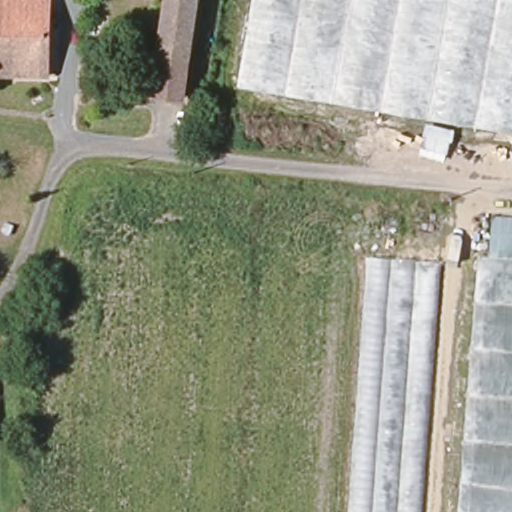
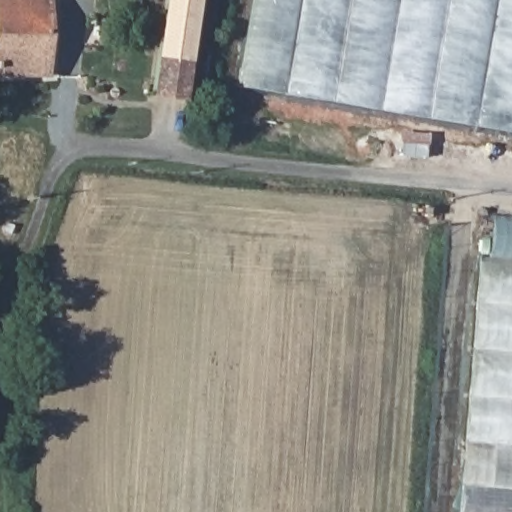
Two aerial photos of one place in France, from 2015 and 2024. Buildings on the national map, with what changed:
unchanged [(48,79),(0,78),(0,0),(49,0),(48,79)]
unchanged [(182,97),(153,93),(167,0),(197,0),(182,97)]
unchanged [(237,89),(251,0),(512,0),(512,136),(237,89)]
unchanged [(135,5),(134,16),(113,16),(114,5),(135,5)]
new [(485,215),(512,217),(512,256),(482,254),(485,215)]
unchanged [(463,488),(482,254),(512,256),(512,492),(463,488)]
demolished [(438,264),(420,512),(353,512),(372,259),(438,264)]
unchanged [(461,512),(463,488),(512,492),(512,512),(461,512)]

